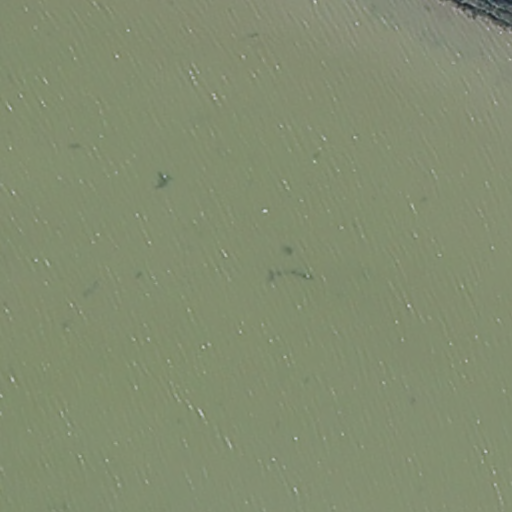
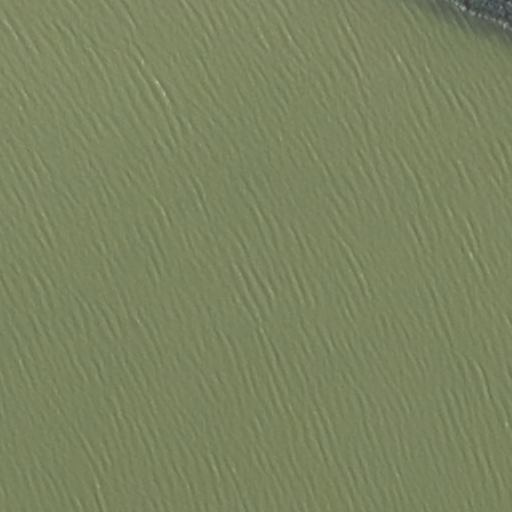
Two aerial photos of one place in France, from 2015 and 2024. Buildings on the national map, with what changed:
[]

